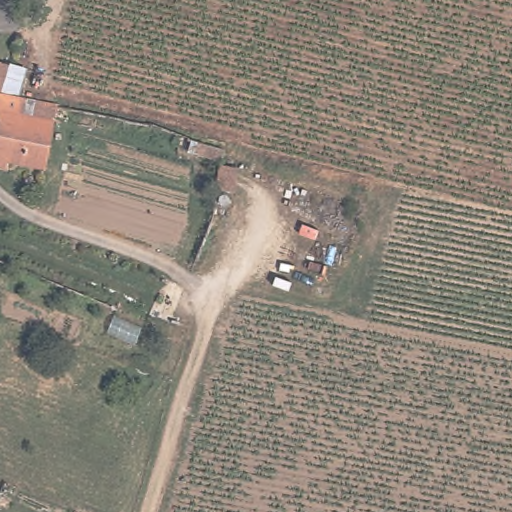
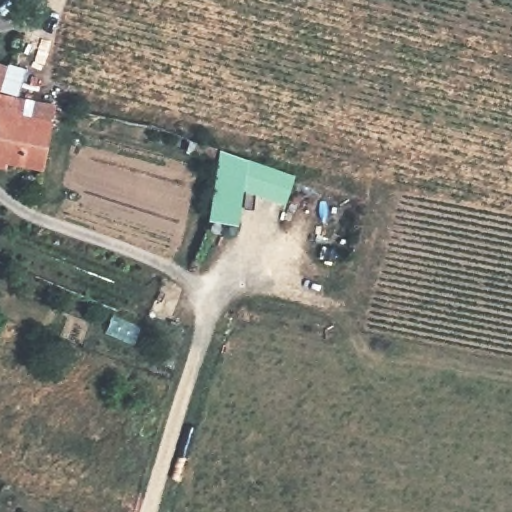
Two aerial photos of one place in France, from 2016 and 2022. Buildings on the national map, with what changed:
unchanged [(10,65),(2,89),(1,92),(0,92),(0,62),(10,65)]
unchanged [(9,155),(0,153),(0,94),(24,100),(27,100),(57,106),(54,121),(50,141),(46,160),(45,166),(8,160),(9,155)]
new [(219,150),(249,160),(295,176),(285,205),(242,190),(238,225),(208,221),(219,150)]

